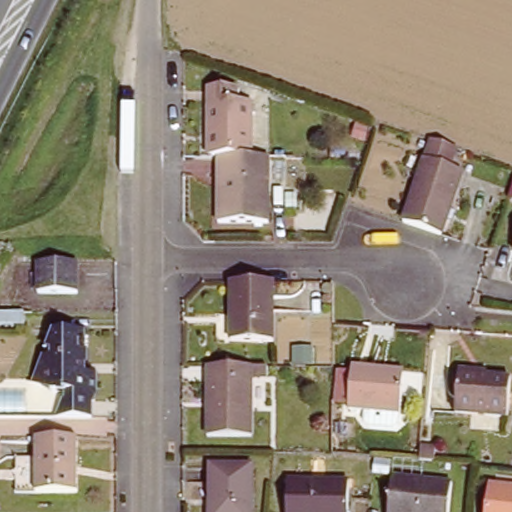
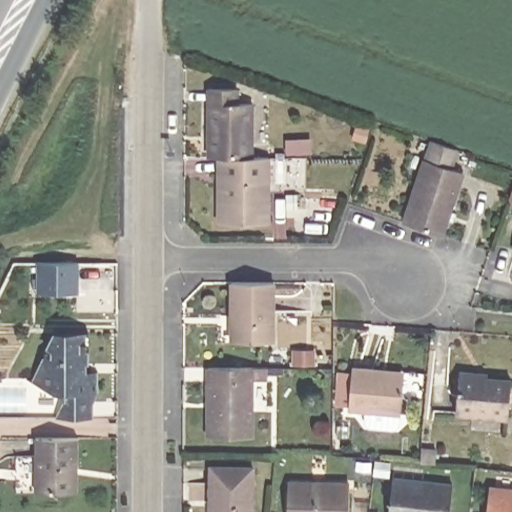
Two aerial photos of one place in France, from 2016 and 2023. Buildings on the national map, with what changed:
unchanged [(235,90),(235,103),(250,103),(250,157),(222,158),(207,158),(207,90),(235,90)]
unchanged [(458,147),(450,170),(463,174),(441,237),(404,224),(432,139),(458,147)]
unchanged [(222,158),(250,157),(266,157),(273,157),(273,176),(272,223),(221,222),(222,202),(222,182),(222,158)]
unchanged [(79,261),(79,292),(37,291),(38,260),(79,261)]
unchanged [(272,281),(272,338),(229,337),(228,281),(272,281)]
unchanged [(66,401),(70,401),(71,395),(56,394),(32,379),(47,355),(57,355),(47,345),(55,330),(90,332),(90,347),(95,347),(94,363),(90,363),(90,370),(102,370),(102,395),(96,395),(97,416),(57,415),(66,401)]
unchanged [(266,365),(267,374),(252,375),(252,435),(207,435),(207,366),(266,365)]
unchanged [(350,411),(355,370),(385,372),(408,375),(407,380),(404,417),(350,411)]
unchanged [(459,371),(487,374),(487,380),(510,382),(507,418),(455,413),(459,377),(459,371)]
unchanged [(77,491),(32,490),(32,436),(77,437),(77,491)]
unchanged [(440,451),(438,466),(422,464),(424,449),(440,451)]
unchanged [(206,512),(210,467),(249,471),(245,512),(206,512)]
unchanged [(444,512),(387,512),(390,477),(447,483),(444,512)]
unchanged [(347,485),(345,512),(285,512),(287,481),(347,485)]
unchanged [(488,512),(490,486),(512,488),(512,512),(488,512)]

